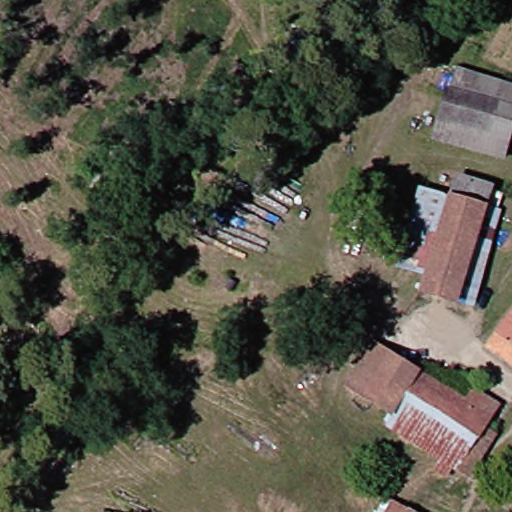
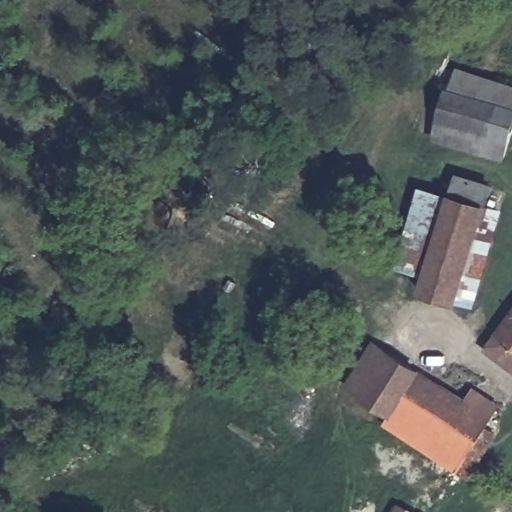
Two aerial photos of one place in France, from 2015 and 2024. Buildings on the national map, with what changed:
unchanged [(451,68),(512,88),(512,93),(494,152),(431,131),(451,68)]
unchanged [(451,301),(414,291),(418,273),(389,264),(410,181),(444,191),(451,170),(487,181),(499,185),(494,208),(467,306),(451,301)]
unchanged [(512,301),(512,353),(487,336),(512,301)]
unchanged [(455,483),(445,475),(443,478),(371,427),(381,415),(342,386),(369,349),(428,394),(478,428),(473,435),(482,442),(455,483)]
unchanged [(378,512),(389,498),(410,512),(378,512)]

